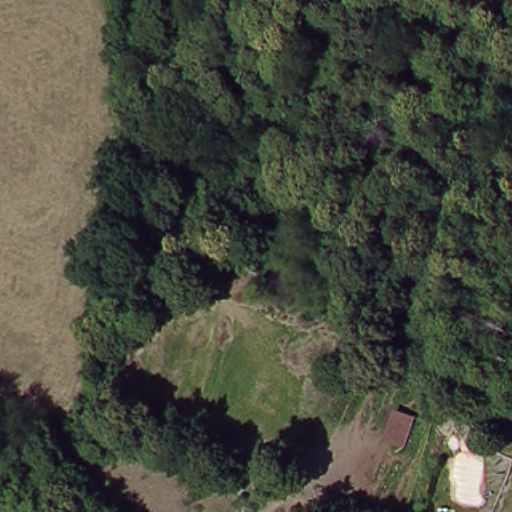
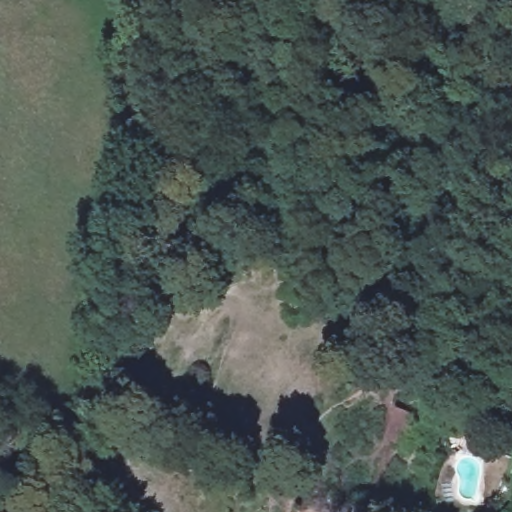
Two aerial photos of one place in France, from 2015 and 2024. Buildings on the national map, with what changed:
unchanged [(419,415),(408,448),(385,440),(397,408),(419,415)]

